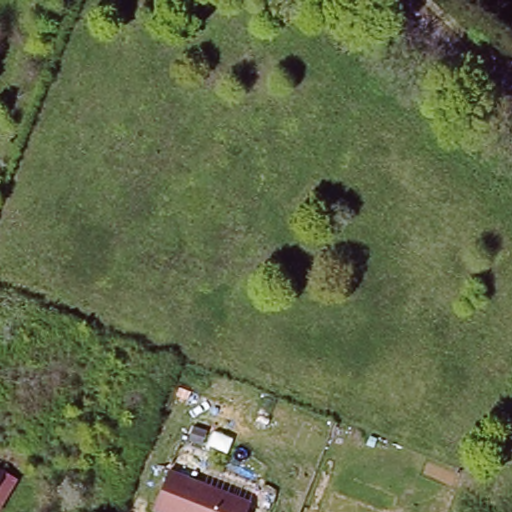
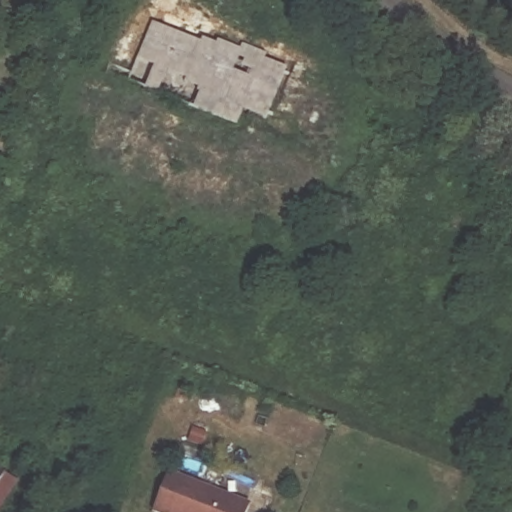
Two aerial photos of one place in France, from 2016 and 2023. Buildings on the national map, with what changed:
new [(266,118),(243,110),(238,125),(107,72),(110,63),(131,70),(151,17),(199,36),(201,34),(216,39),(217,35),(239,44),(243,40),(269,50),(266,55),(288,64),(266,118)]
unchanged [(255,497),(249,512),(154,512),(151,510),(171,467),(255,497)]
unchanged [(16,477),(1,512),(0,512),(0,469),(16,477)]

